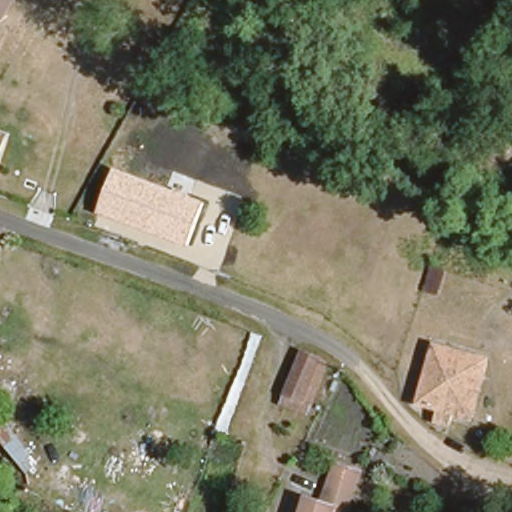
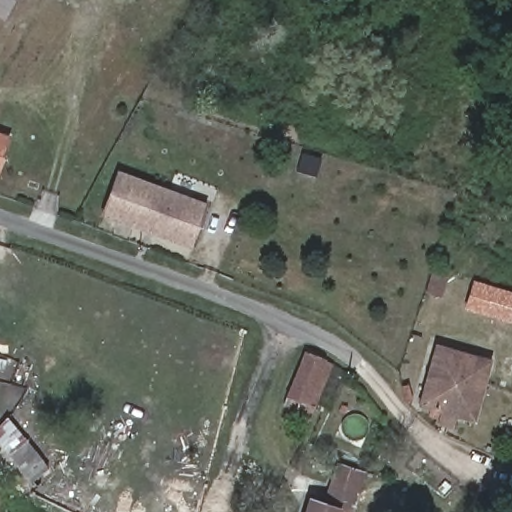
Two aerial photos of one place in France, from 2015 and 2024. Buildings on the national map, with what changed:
unchanged [(7,139),(0,156),(0,137),(7,139)]
unchanged [(192,248),(101,215),(117,170),(207,203),(192,248)]
unchanged [(435,304),(420,299),(429,271),(443,276),(435,304)]
new [(473,279),(512,291),(512,320),(511,324),(464,309),(473,279)]
unchanged [(438,339),(490,356),(471,413),(421,398),(438,339)]
unchanged [(311,403),(318,407),(313,417),(283,405),(304,348),(332,357),(311,403)]
unchanged [(358,512),(302,512),(308,493),(325,497),(337,458),(370,468),(354,511),(358,512)]

